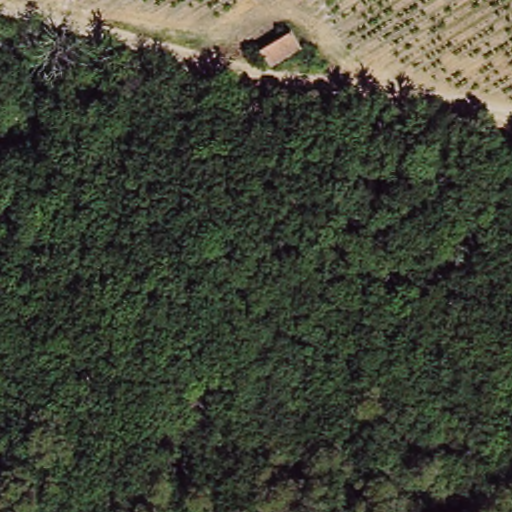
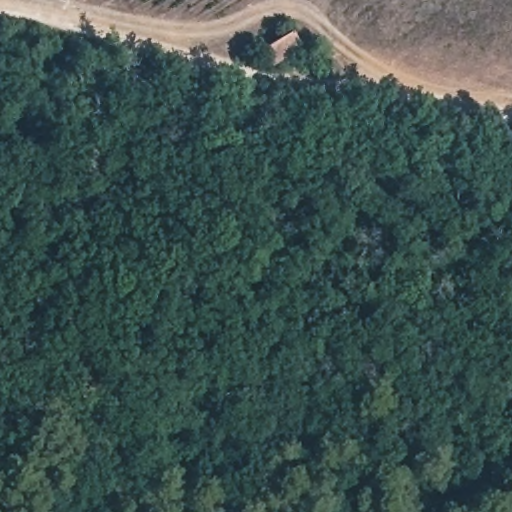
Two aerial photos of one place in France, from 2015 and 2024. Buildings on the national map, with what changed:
unchanged [(273,65),(262,47),(291,27),(303,46),(273,65)]

